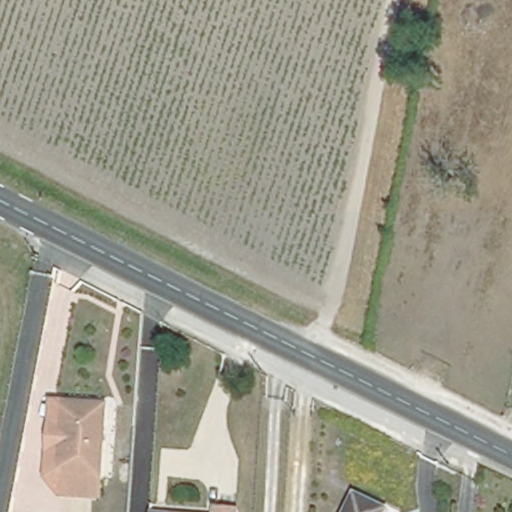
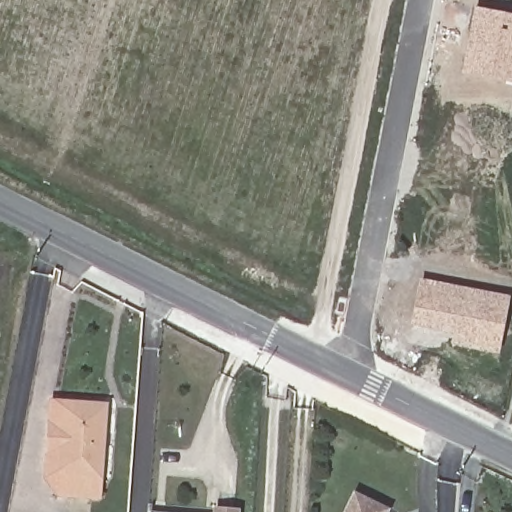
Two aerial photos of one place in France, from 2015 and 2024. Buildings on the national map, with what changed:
new [(462,74),(475,7),(512,14),(512,82),(462,74)]
new [(511,295),(500,353),(452,345),(455,333),(410,325),(420,277),(511,295)]
unchanged [(101,501),(61,498),(62,475),(50,475),(55,403),(68,404),(108,406),(101,501)]
unchanged [(392,497),(386,512),(346,512),(361,482),(392,497)]
unchanged [(234,512),(220,512),(220,511),(234,512)]

